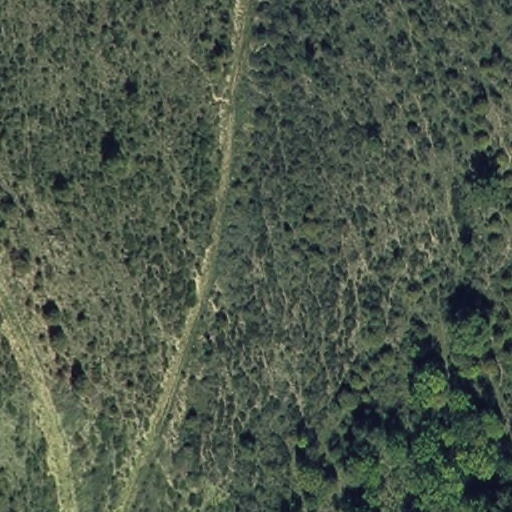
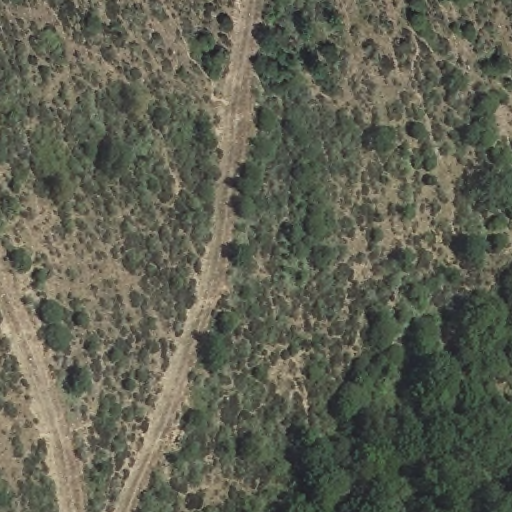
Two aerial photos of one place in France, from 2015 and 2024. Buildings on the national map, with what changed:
[]

